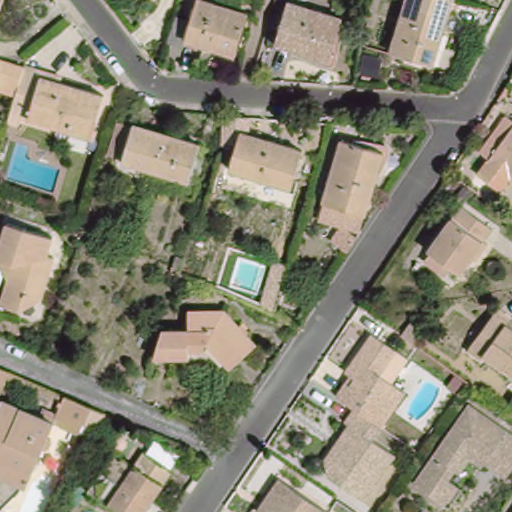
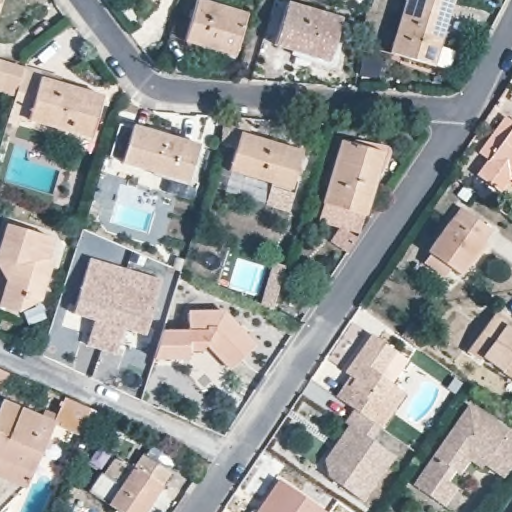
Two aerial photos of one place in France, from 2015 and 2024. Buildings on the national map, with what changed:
unchanged [(0,10),(0,0),(3,0),(0,10)]
unchanged [(197,0),(206,0),(247,13),(235,56),(185,42),(197,0)]
unchanged [(390,6),(387,0),(402,0),(390,6)]
unchanged [(288,2),(340,17),(327,61),(275,46),(288,2)]
unchanged [(384,73),(399,24),(405,3),(448,16),(442,36),(429,85),(384,73)]
unchanged [(0,91),(0,60),(25,67),(42,72),(41,77),(102,94),(90,139),(28,122),(20,119),(16,132),(6,129),(10,117),(16,96),(0,91)]
unchanged [(193,183),(127,164),(115,160),(127,121),(140,125),(205,144),(193,183)]
unchanged [(245,133),(307,150),(295,189),(235,172),(245,133)]
unchanged [(330,204),(348,142),(387,153),(368,215),(330,204)]
unchanged [(512,149),(512,176),(499,167),(512,149)]
unchanged [(451,273),(443,283),(423,268),(430,258),(429,257),(461,213),(493,235),(461,280),(451,273)]
unchanged [(20,309),(1,303),(13,263),(0,258),(0,239),(6,220),(50,234),(43,253),(51,256),(37,297),(26,294),(20,309)]
new [(145,336),(123,330),(116,352),(87,342),(93,319),(73,312),(91,259),(161,281),(145,336)]
new [(273,263),(287,267),(273,312),(260,306),(273,263)]
unchanged [(189,352),(189,360),(153,360),(162,331),(188,329),(189,311),(225,311),(255,344),(228,369),(205,345),(200,352),(189,352)]
unchanged [(488,362),(485,366),(473,356),(502,316),(512,323),(512,328),(511,329),(512,329),(512,378),(488,362)]
unchanged [(376,429),(350,410),(332,398),(342,384),(347,377),(343,374),(370,335),(405,361),(390,384),(404,394),(378,430),(376,429)]
unchanged [(0,369),(10,374),(2,392),(0,391),(0,369)]
unchanged [(101,431),(83,424),(82,428),(55,416),(62,397),(90,409),(107,416),(101,431)]
unchanged [(53,421),(25,488),(0,477),(0,403),(1,399),(53,421)]
unchanged [(444,485),(453,492),(444,506),(413,484),(467,408),(512,440),(512,470),(503,483),(482,468),(479,473),(467,464),(456,479),(451,475),(444,485)]
unchanged [(350,410),(376,429),(368,442),(390,456),(359,505),(324,480),(320,461),(328,449),(343,426),(340,424),(350,410)]
unchanged [(105,473),(109,475),(121,457),(137,468),(148,453),(175,472),(149,512),(126,512),(94,491),(105,473)]
unchanged [(256,499),(273,477),(324,512),(256,512),(250,508),(256,499)]

